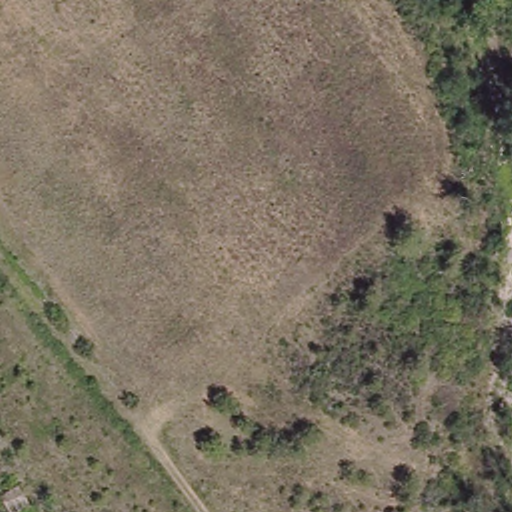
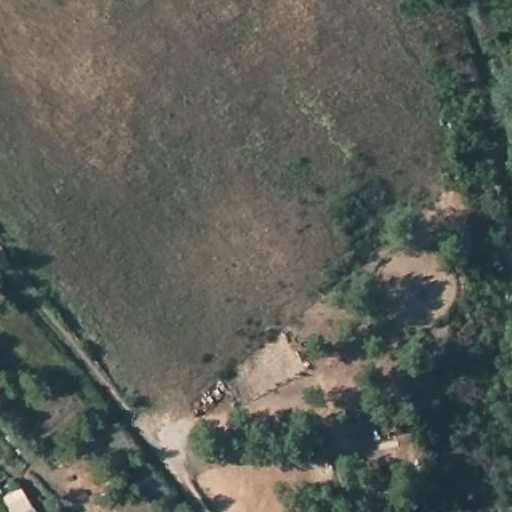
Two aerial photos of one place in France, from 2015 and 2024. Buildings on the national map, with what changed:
unchanged [(0,495),(0,493),(24,484),(32,512),(31,512),(6,512),(0,495)]

